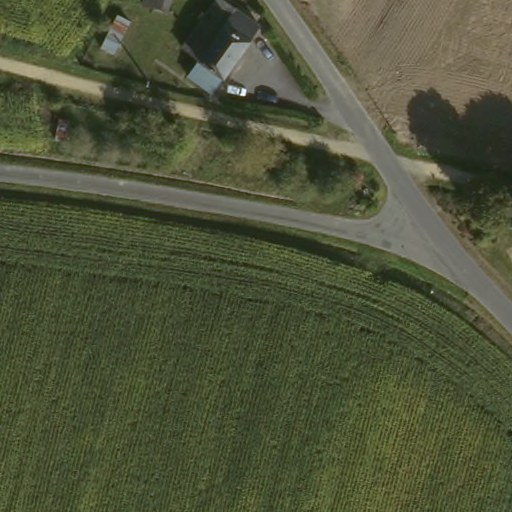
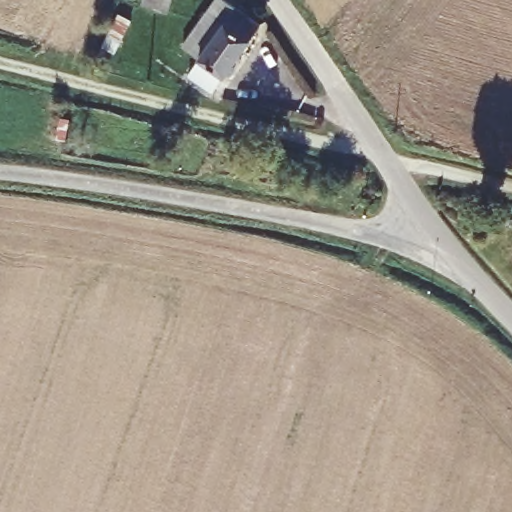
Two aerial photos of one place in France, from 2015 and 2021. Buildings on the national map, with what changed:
unchanged [(145,0),(170,0),(167,8),(145,0)]
unchanged [(218,84),(214,89),(201,80),(190,71),(199,58),(182,45),(216,0),(231,0),(263,24),(218,84)]

